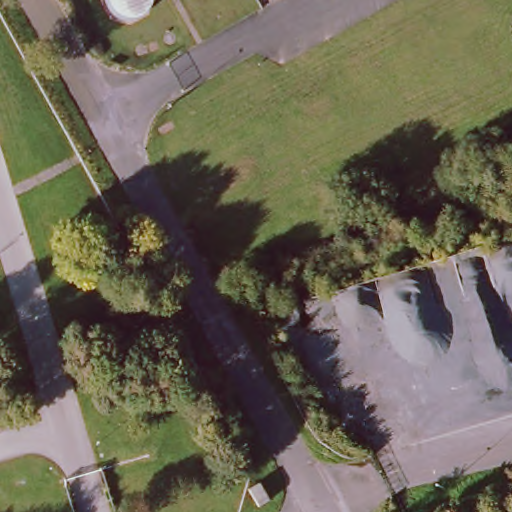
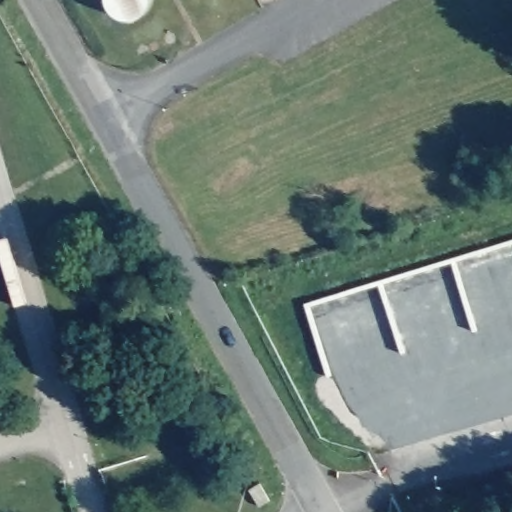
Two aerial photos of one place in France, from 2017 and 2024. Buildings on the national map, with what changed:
unchanged [(268,498),(257,504),(254,499),(248,486),(253,483),(259,480),(268,498)]

